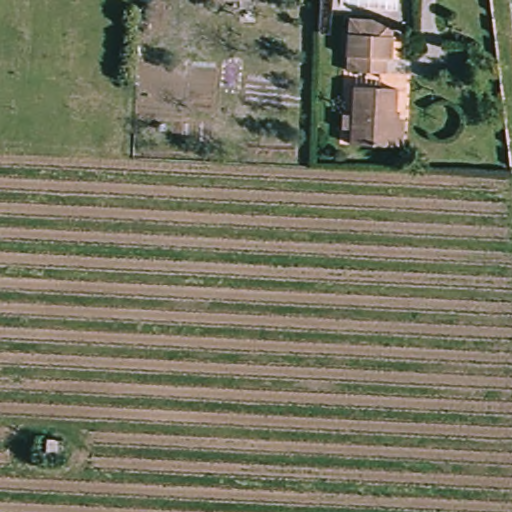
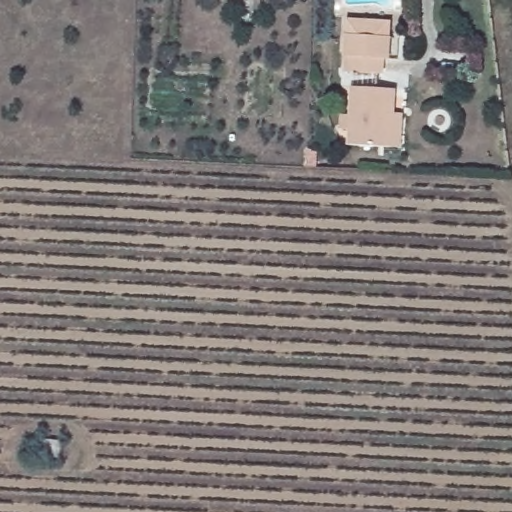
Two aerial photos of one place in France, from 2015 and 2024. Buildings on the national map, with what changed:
unchanged [(347,51),(350,16),(375,17),(377,14),(395,15),(393,51),(387,54),(385,69),(355,67),(346,66),(347,51)]
unchanged [(388,150),(348,147),(353,84),(392,86),(388,150)]
unchanged [(61,461),(42,460),(43,440),(63,441),(61,461)]

